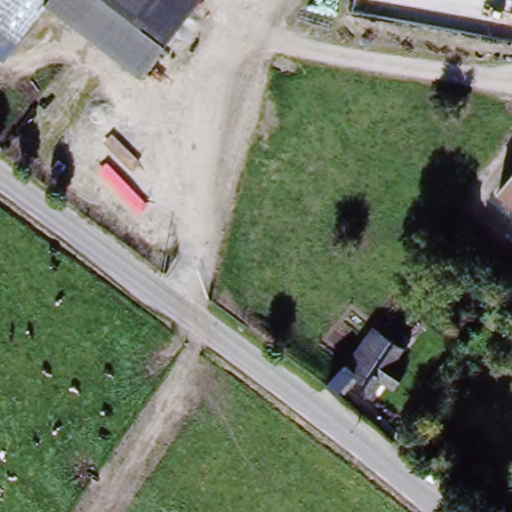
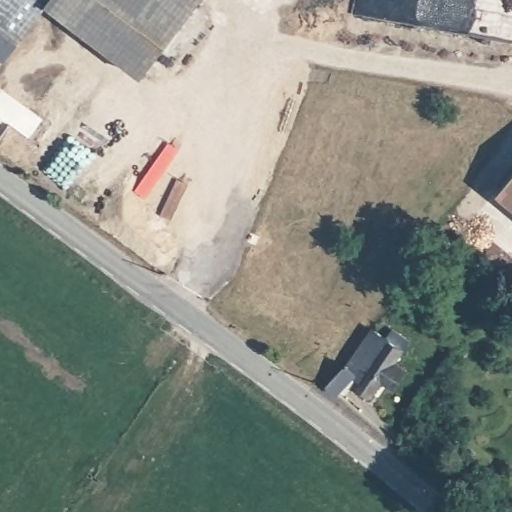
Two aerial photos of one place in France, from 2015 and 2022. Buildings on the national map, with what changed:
unchanged [(0,33),(0,0),(50,0),(15,45),(0,33)]
unchanged [(46,5),(50,0),(200,0),(142,77),(46,5)]
unchanged [(0,58),(0,33),(15,45),(3,60),(0,58)]
unchanged [(512,171),(512,200),(497,188),(512,171)]
unchanged [(366,395),(351,385),(340,397),(327,385),(370,342),(380,351),(396,333),(411,345),(366,395)]

